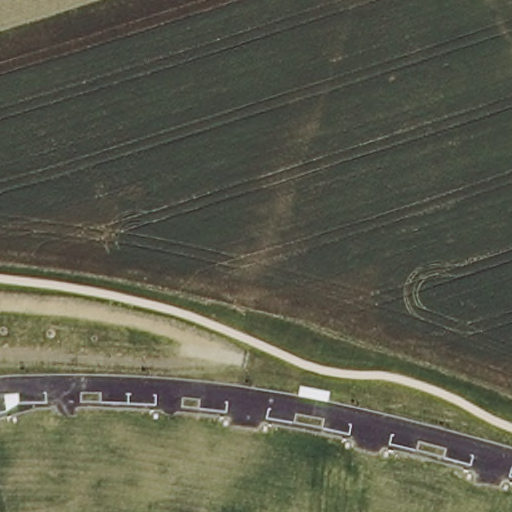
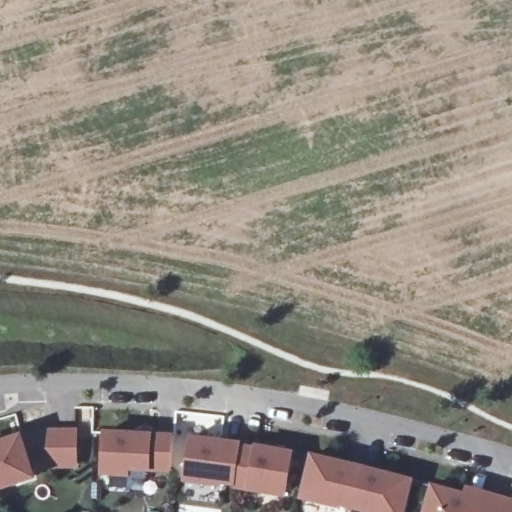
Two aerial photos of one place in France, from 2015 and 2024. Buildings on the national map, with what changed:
new [(40,429),(82,429),(79,469),(43,467),(43,462),(31,463),(36,479),(0,490),(0,440),(23,434),(40,429)]
new [(173,455),(172,474),(130,471),(129,478),(102,476),(104,430),(175,434),(173,455)]
new [(243,442),(294,452),(286,498),(235,488),(183,482),(190,436),(243,442)]
new [(415,479),(405,512),(353,512),(300,499),(311,453),(415,479)]
new [(432,484),(465,492),(467,486),(512,498),(512,512),(424,512),(432,484)]

